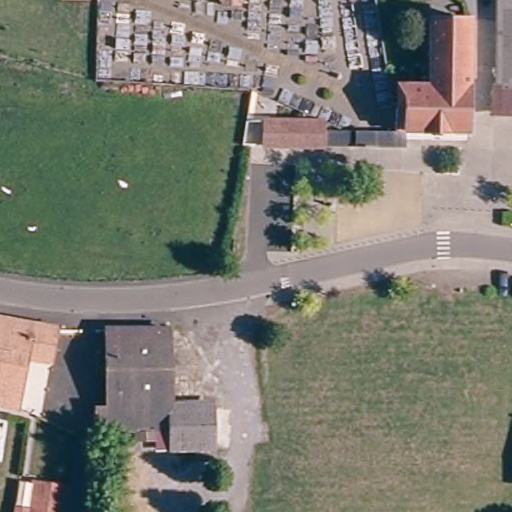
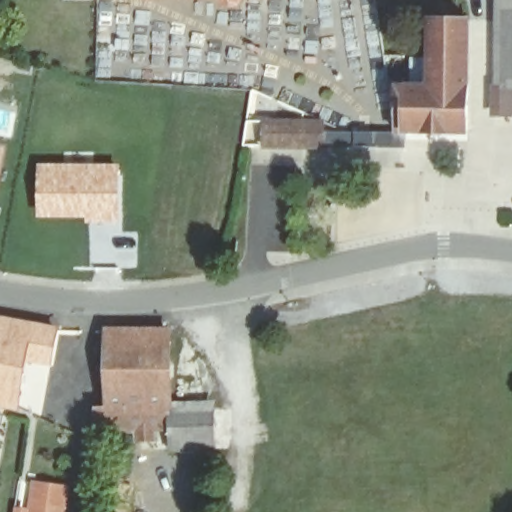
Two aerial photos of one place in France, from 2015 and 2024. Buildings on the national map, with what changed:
unchanged [(240,5),(230,5),(227,0),(243,0),(240,5)]
unchanged [(493,115),(495,0),(512,0),(512,116),(502,116),(493,115)]
unchanged [(471,15),(471,126),(406,126),(400,126),(400,82),(432,82),(432,15),(471,15)]
unchanged [(306,118),(325,118),(325,127),(325,143),(266,144),(266,119),(306,118)]
unchanged [(346,127),(400,126),(406,126),(407,142),(394,142),(360,143),(325,143),(325,127),(346,127)]
new [(5,146),(0,172),(0,145),(5,146)]
new [(36,162),(120,162),(121,224),(86,223),(86,220),(35,219),(36,162)]
unchanged [(20,393),(27,394),(25,404),(0,400),(0,318),(54,327),(48,359),(27,355),(23,378),(20,393)]
unchanged [(169,402),(200,401),(212,401),(211,440),(211,457),(195,456),(195,449),(164,448),(165,429),(92,427),(92,400),(103,401),(105,327),(169,327),(169,402)]
unchanged [(33,484),(44,485),(65,487),(64,501),(63,512),(31,512),(32,499),(33,484)]

